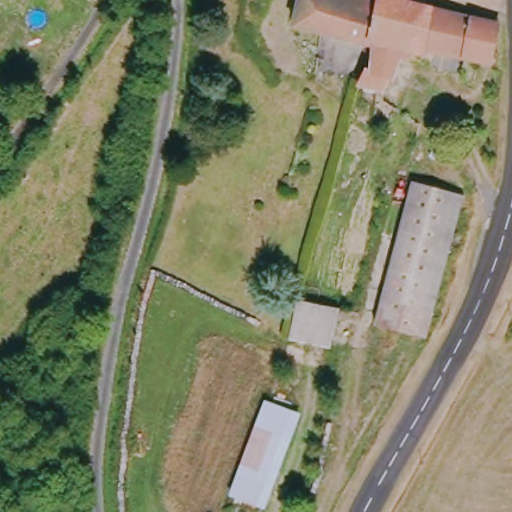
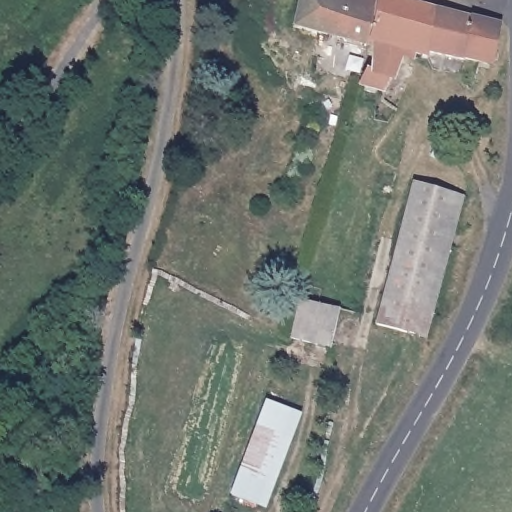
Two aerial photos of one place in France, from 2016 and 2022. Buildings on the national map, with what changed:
unchanged [(373,0),(373,2),(365,49),(287,29),(293,0),(373,0)]
unchanged [(419,0),(422,15),(373,2),(373,0),(419,0)]
unchanged [(373,2),(422,15),(491,30),(482,72),(420,54),(415,61),(391,56),(365,49),(373,2)]
unchanged [(357,69),(362,70),(365,49),(391,56),(377,94),(352,87),(357,69)]
unchanged [(373,305),(411,191),(456,205),(417,321),(373,305)]
unchanged [(286,341),(293,307),(318,313),(328,316),(321,349),(309,346),(286,341)]
unchanged [(225,497),(271,410),(296,420),(251,508),(225,497)]

